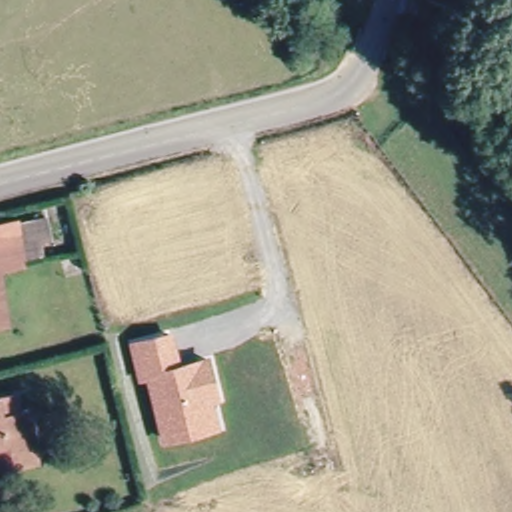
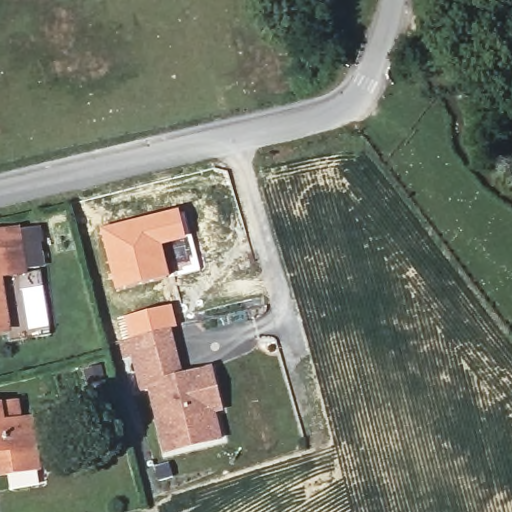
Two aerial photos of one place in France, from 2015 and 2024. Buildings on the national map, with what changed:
new [(181,210),(188,239),(164,246),(171,276),(115,290),(101,230),(181,210)]
unchanged [(50,220),(56,250),(44,252),(47,268),(26,271),(19,225),(50,220)]
unchanged [(19,225),(26,271),(0,276),(0,229),(19,225)]
unchanged [(0,328),(0,293),(1,295),(7,327),(0,328)]
unchanged [(222,438),(164,453),(148,390),(140,391),(130,351),(174,341),(182,372),(212,366),(223,410),(216,412),(222,438)]
unchanged [(0,478),(0,409),(17,406),(19,423),(30,422),(35,457),(37,473),(22,475),(0,478)]

